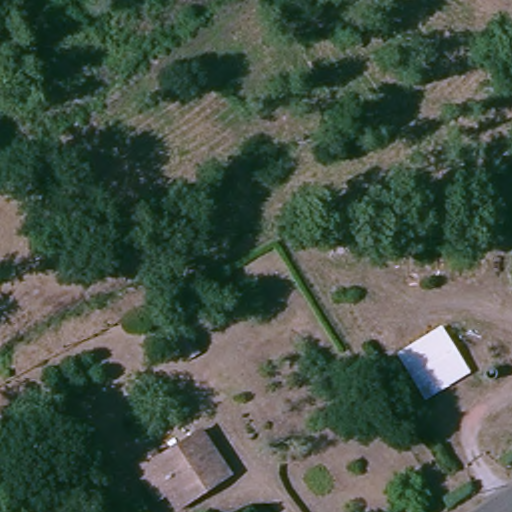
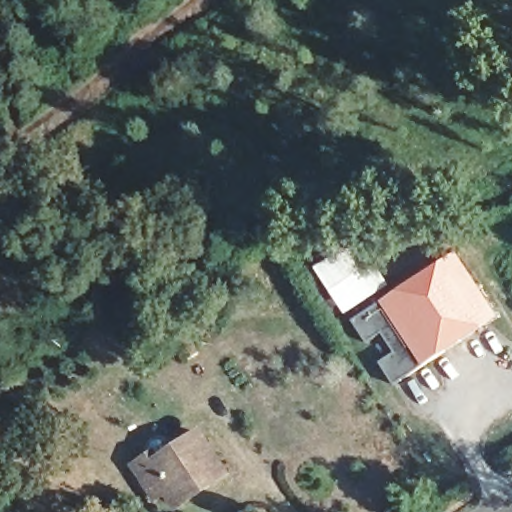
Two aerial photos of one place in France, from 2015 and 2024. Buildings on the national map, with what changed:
new [(361,240),(365,247),(358,252),(361,256),(367,252),(390,286),(368,301),(360,290),(353,295),(360,306),(347,314),(317,270),(361,240)]
new [(498,317),(394,384),(381,361),(394,352),(383,332),(368,341),(354,319),(458,252),(498,317)]
demolished [(426,405),(399,354),(444,326),(473,375),(426,405)]
unchanged [(192,397),(176,407),(162,387),(177,376),(192,397)]
unchanged [(177,493),(173,486),(158,496),(136,463),(154,453),(157,461),(205,431),(230,472),(213,484),(185,504),(177,493)]

